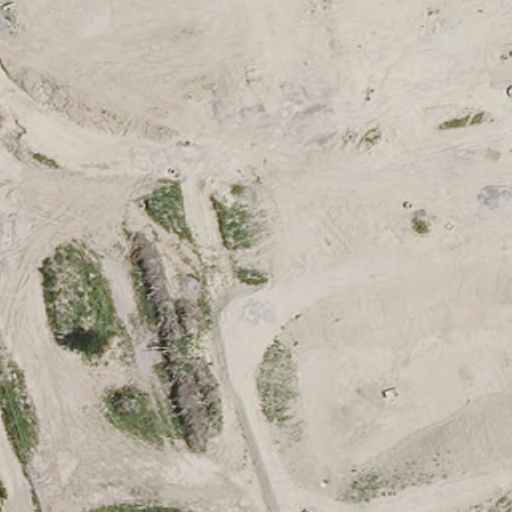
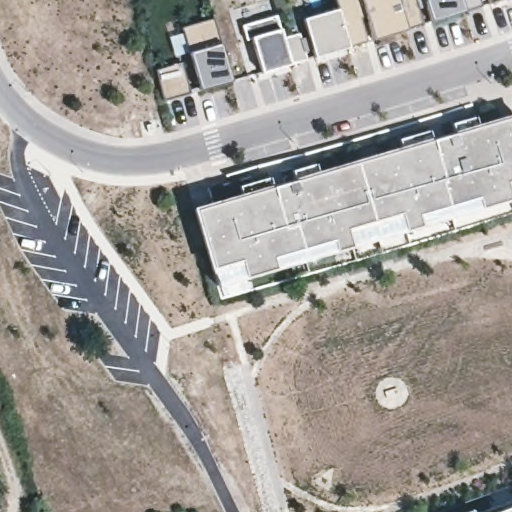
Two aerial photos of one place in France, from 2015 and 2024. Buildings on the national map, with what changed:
new [(481,2),(463,2),(465,8),(433,19),(427,1),(421,8),(425,21),(407,25),(409,29),(375,40),(374,36),(353,44),(339,3),(338,0),(480,0),(481,2)]
new [(341,9),(353,44),(316,57),(292,64),(290,58),(284,39),(308,31),(304,20),(341,9)]
new [(281,28),(290,58),(292,64),(262,72),(252,37),(248,39),(243,21),(277,12),(281,28)]
new [(222,41),(232,79),(200,88),(191,54),(181,26),(215,17),(222,41)]
new [(182,62),(191,94),(164,102),(156,70),(182,62)]
new [(215,274),(212,275),(194,208),(240,193),(239,185),(269,176),(271,186),(296,179),(293,169),(315,164),(317,171),(401,147),(399,138),(430,128),(432,138),(455,130),(453,122),(475,116),(477,123),(512,113),(512,200),(218,287),(215,274)]
new [(479,512),(512,500),(512,512),(479,512)]
new [(474,512),(458,512),(471,507),(474,512)]

